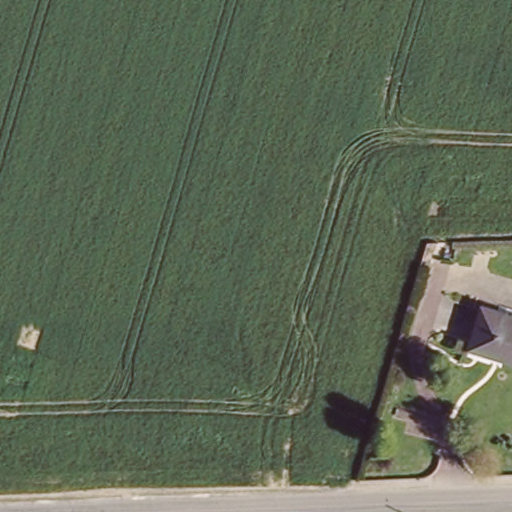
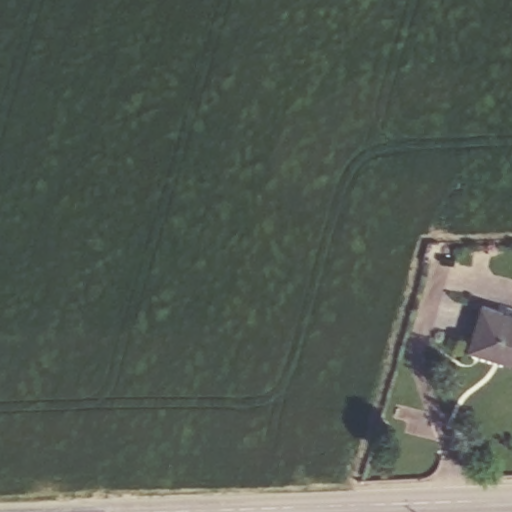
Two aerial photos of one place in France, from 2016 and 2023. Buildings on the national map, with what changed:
unchanged [(471,333),(481,301),(512,311),(512,358),(502,355),(467,344),(471,333)]

